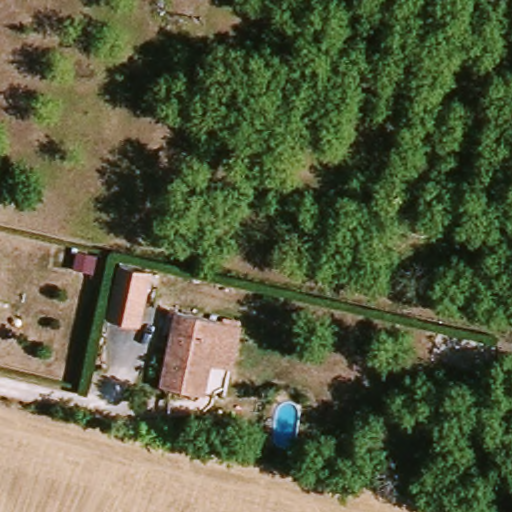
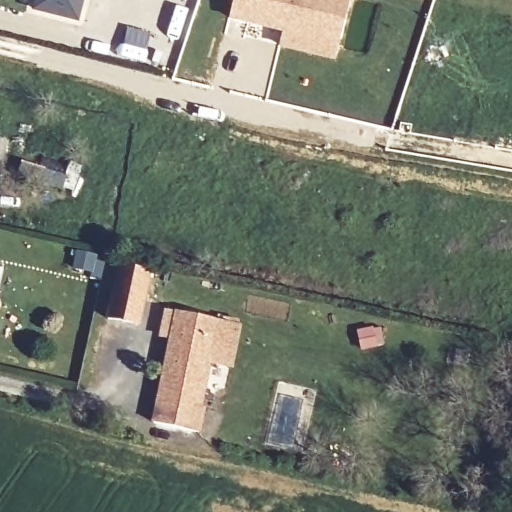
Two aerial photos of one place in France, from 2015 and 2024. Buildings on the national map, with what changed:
new [(33,11),(36,0),(84,0),(78,24),(33,11)]
new [(278,49),(281,34),(228,21),(233,0),(348,0),(334,63),(278,49)]
unchanged [(118,264),(153,272),(143,327),(106,319),(118,264)]
unchanged [(214,343),(211,343),(198,395),(157,385),(173,314),(219,324),(214,343)]
unchanged [(243,328),(235,370),(206,364),(211,343),(214,343),(219,324),(243,328)]

